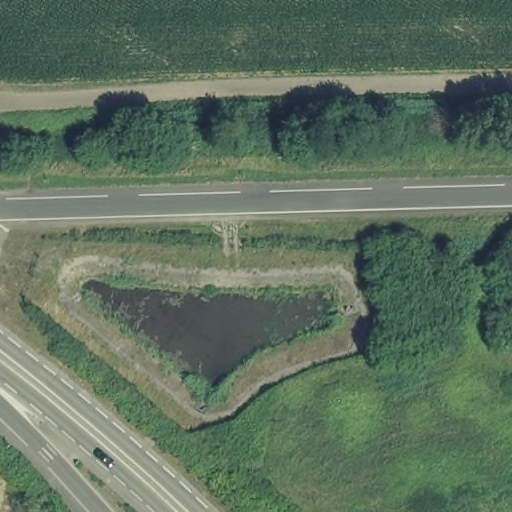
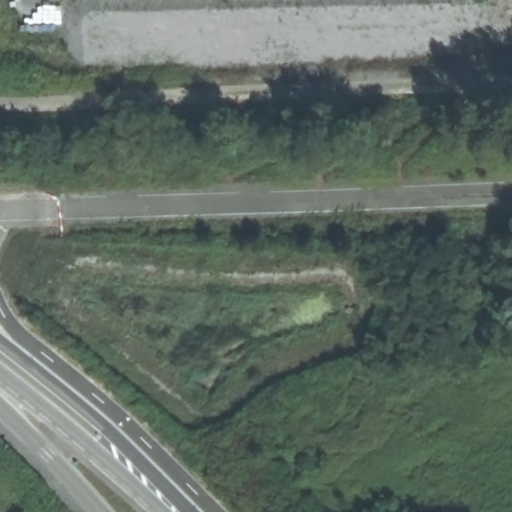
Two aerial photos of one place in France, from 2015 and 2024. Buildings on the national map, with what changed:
[]

